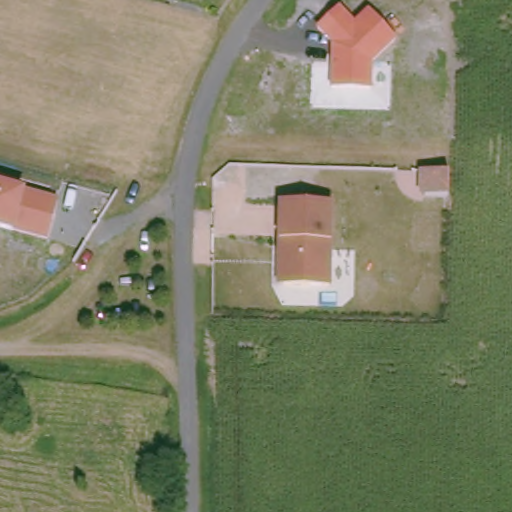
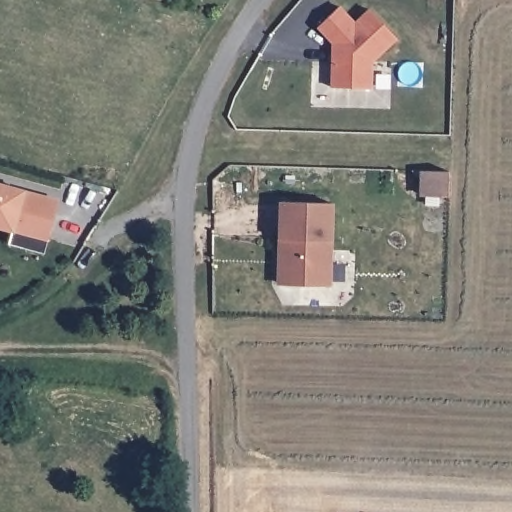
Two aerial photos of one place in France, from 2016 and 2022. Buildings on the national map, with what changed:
unchanged [(331,45),(315,27),(340,5),(354,21),(368,8),(397,39),(373,61),(373,87),(330,87),(331,45)]
unchanged [(24,186),(58,197),(47,239),(14,230),(0,226),(0,180),(24,186)]
unchanged [(277,236),(278,199),(333,200),(332,239),(330,283),(276,281),(277,236)]

